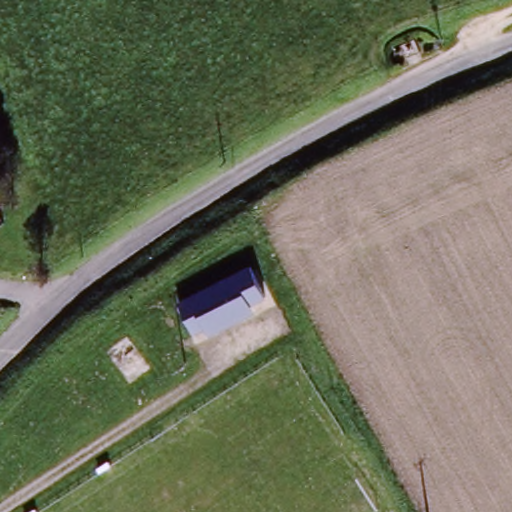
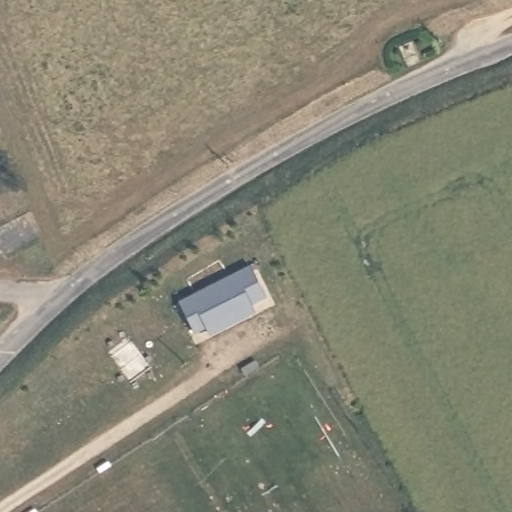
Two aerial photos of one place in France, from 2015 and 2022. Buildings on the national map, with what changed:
unchanged [(265,300),(245,309),(246,313),(211,330),(209,325),(191,332),(177,303),(250,269),(265,300)]

